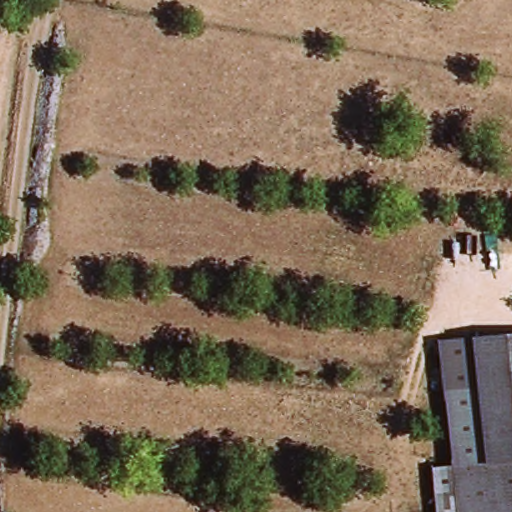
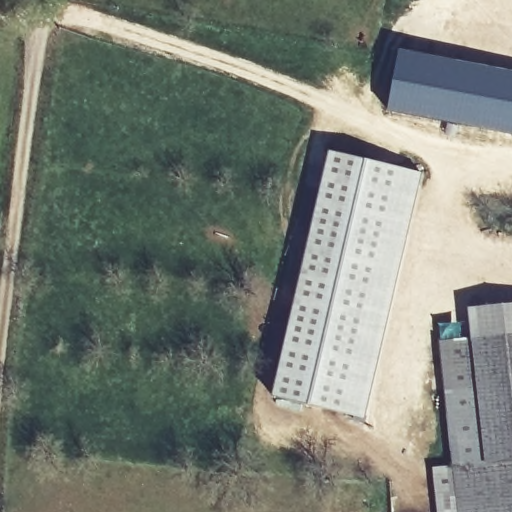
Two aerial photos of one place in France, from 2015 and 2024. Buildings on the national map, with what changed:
new [(388,110),(399,51),(512,73),(512,134),(388,110)]
new [(421,174),(366,421),(271,396),(327,151),(421,174)]
unchanged [(454,470),(438,347),(473,344),(472,316),(512,312),(512,512),(438,512),(434,473),(454,470)]

